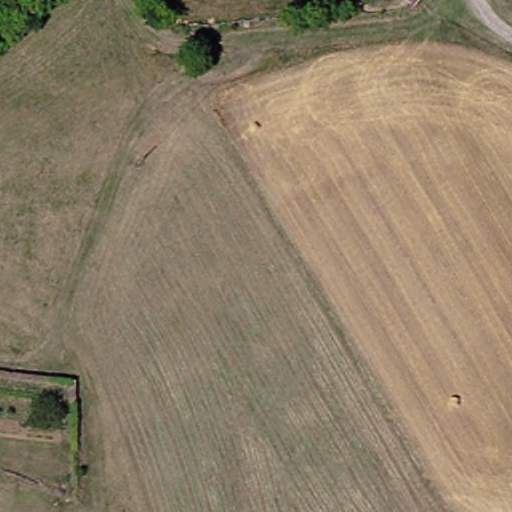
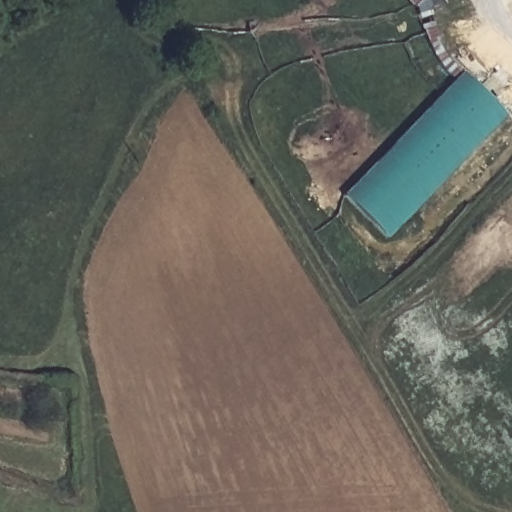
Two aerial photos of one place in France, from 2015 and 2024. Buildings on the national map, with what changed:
new [(422,0),(415,7),(408,0),(422,0)]
new [(505,115),(386,237),(346,195),(462,73),(505,115)]

